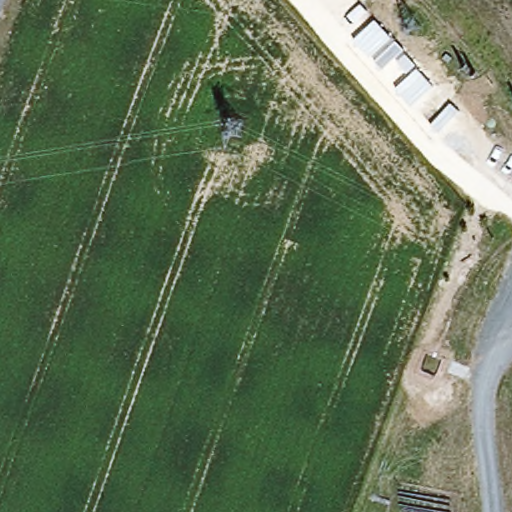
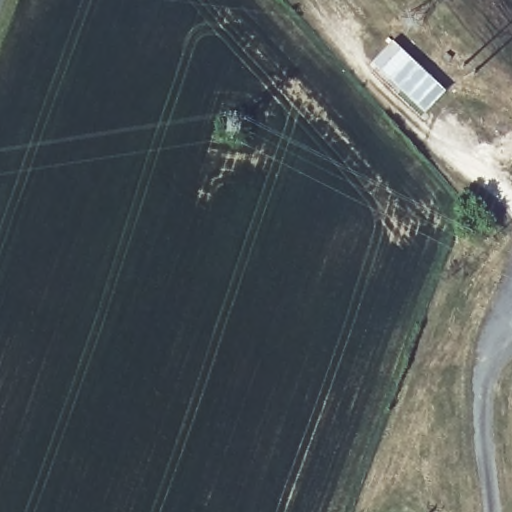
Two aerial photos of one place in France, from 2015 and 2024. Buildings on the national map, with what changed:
new [(372,62),(393,40),(446,91),(425,112),(372,62)]

